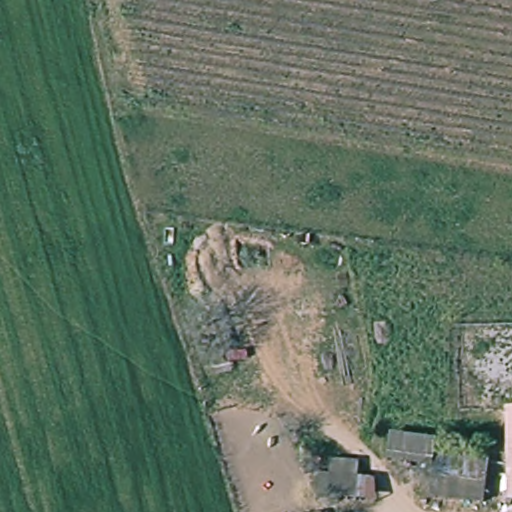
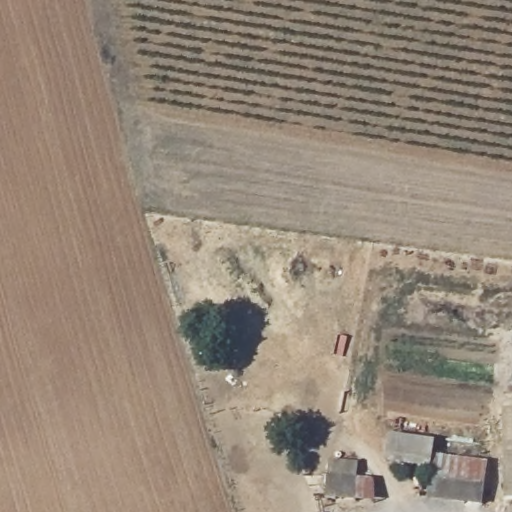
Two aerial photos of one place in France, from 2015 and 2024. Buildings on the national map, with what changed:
unchanged [(508,502),(507,411),(512,410),(512,501),(508,502)]
unchanged [(429,472),(382,464),(387,432),(434,438),(432,457),(429,472)]
unchanged [(490,466),(484,508),(424,499),(429,472),(432,457),(490,466)]
unchanged [(376,507),(349,507),(349,500),(310,498),(312,474),(329,474),(331,458),(358,459),(357,477),(377,477),(376,507)]

